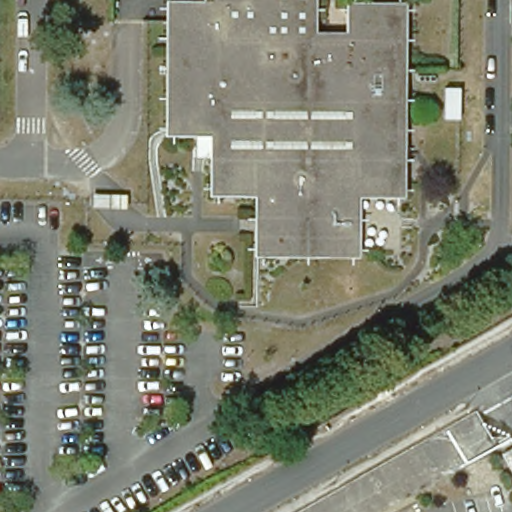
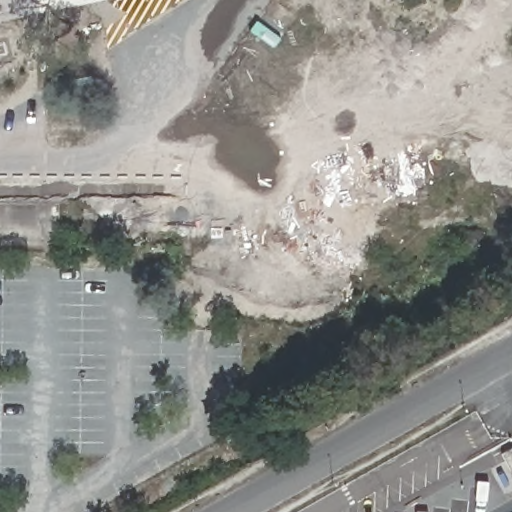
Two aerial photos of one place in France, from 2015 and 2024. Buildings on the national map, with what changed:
demolished [(225,14),(210,13),(209,6),(218,6),(217,0),(314,0),(313,46),(359,47),(359,17),(403,17),(402,74),(400,194),(357,193),(356,254),(267,254),(268,194),(223,194),(224,133),(179,132),(181,27),(224,27),(225,14)]
unchanged [(512,449),(512,490),(495,459),(512,449)]

